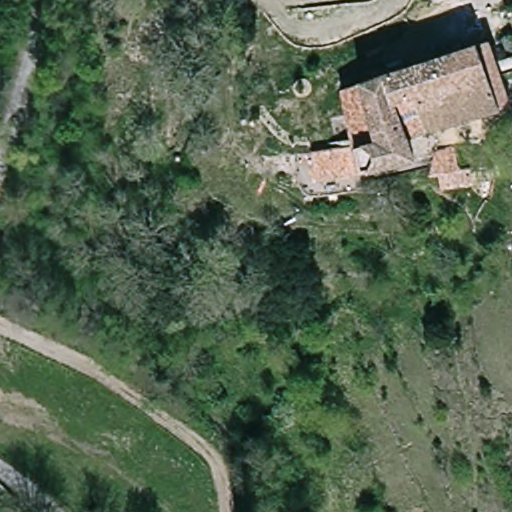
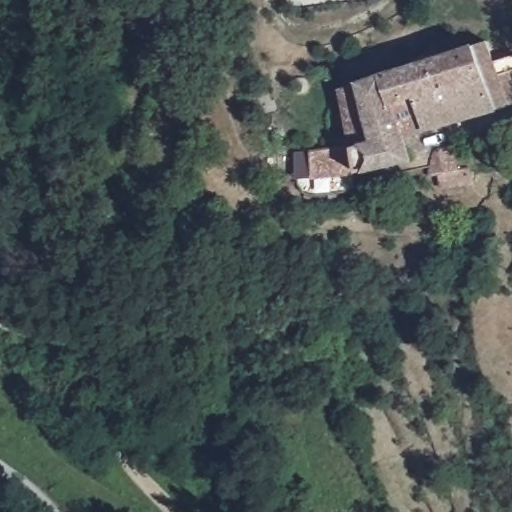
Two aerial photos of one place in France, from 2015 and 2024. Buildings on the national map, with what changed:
unchanged [(480,43),(502,110),(416,135),(403,67),(480,43)]
unchanged [(416,135),(397,140),(403,159),(362,171),(337,87),(403,67),(416,135)]
unchanged [(459,170),(470,168),(473,185),(441,189),(439,175),(428,177),(433,149),(454,144),(459,170)]
unchanged [(355,175),(313,180),(311,151),(351,146),(355,175)]

